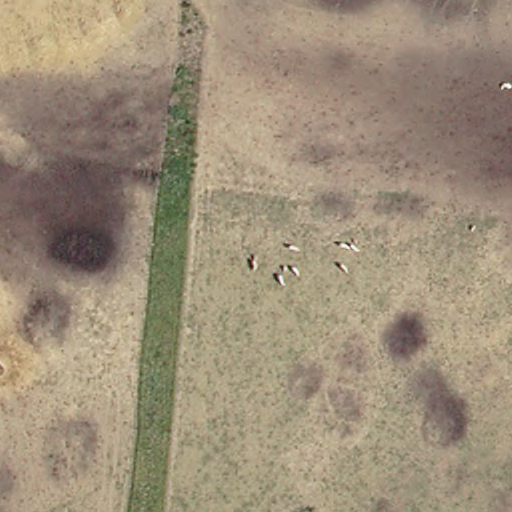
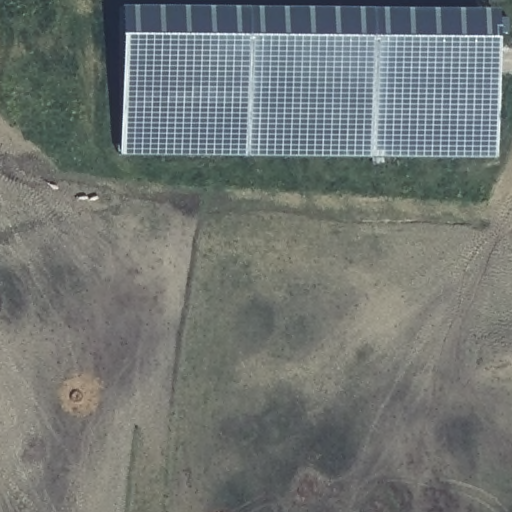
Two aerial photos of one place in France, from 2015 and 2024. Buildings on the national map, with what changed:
new [(502,155),(129,154),(130,9),(503,10),(502,155)]

